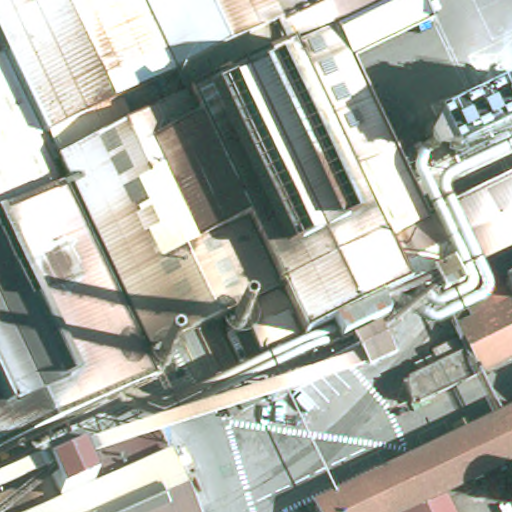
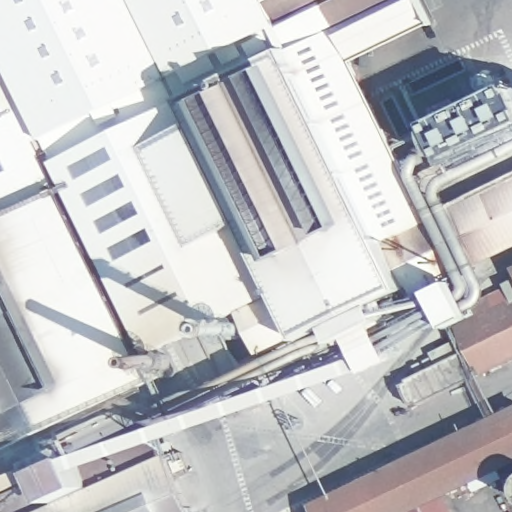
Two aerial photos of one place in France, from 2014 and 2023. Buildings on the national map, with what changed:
unchanged [(435,21),(355,61),(431,213),(512,173),(512,251),(459,276),(465,293),(441,305),(435,292),(385,314),(402,358),(368,373),(355,342),(338,350),(330,331),(275,358),(255,314),(145,363),(155,385),(0,455),(0,0),(425,0),(435,21)]
unchanged [(433,121),(512,85),(512,153),(457,178),(450,160),(433,121)]
unchanged [(407,408),(400,391),(407,388),(403,381),(435,366),(429,354),(461,337),(457,330),(510,304),(502,289),(512,285),(512,366),(418,412),(415,404),(407,408)]
unchanged [(261,385),(268,398),(231,418),(224,405),(261,385)]
unchanged [(416,512),(325,512),(322,506),(512,419),(512,468),(452,495),(416,512)]
unchanged [(48,480),(81,466),(85,473),(163,440),(175,466),(190,460),(198,478),(183,486),(194,512),(0,512),(0,510),(51,487),(48,480)]
unchanged [(460,512),(416,512),(452,495),(460,512)]

